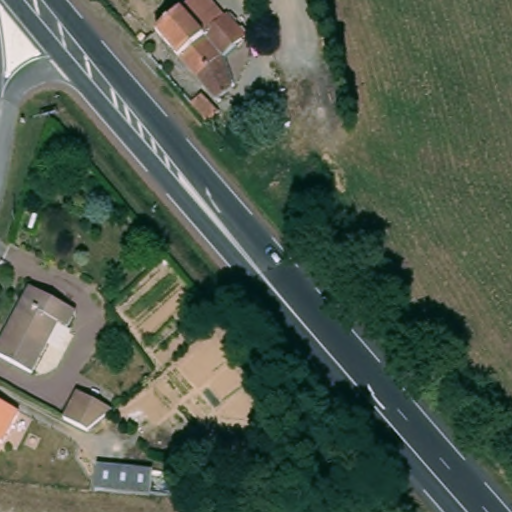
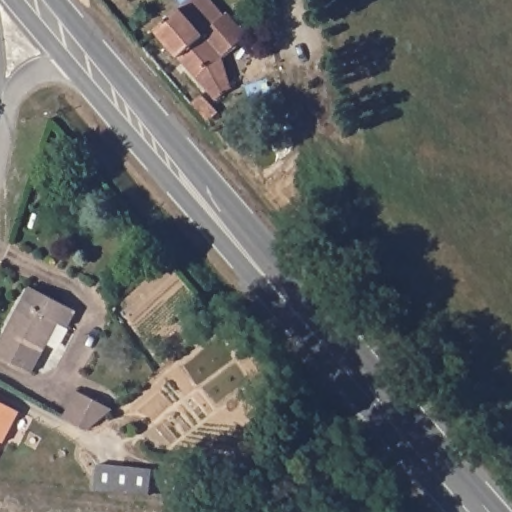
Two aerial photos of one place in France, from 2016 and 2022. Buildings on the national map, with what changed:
unchanged [(158,26),(191,0),(212,0),(243,35),(222,57),(235,83),(217,97),(158,26)]
unchanged [(202,94),(218,112),(206,122),(189,103),(202,94)]
unchanged [(73,328),(63,322),(31,372),(0,355),(0,340),(34,286),(81,315),(73,328)]
unchanged [(66,381),(101,395),(76,420),(46,408),(66,381)]
unchanged [(9,438),(1,434),(0,436),(0,400),(24,412),(9,438)]
unchanged [(96,475),(150,469),(153,496),(99,501),(96,475)]

